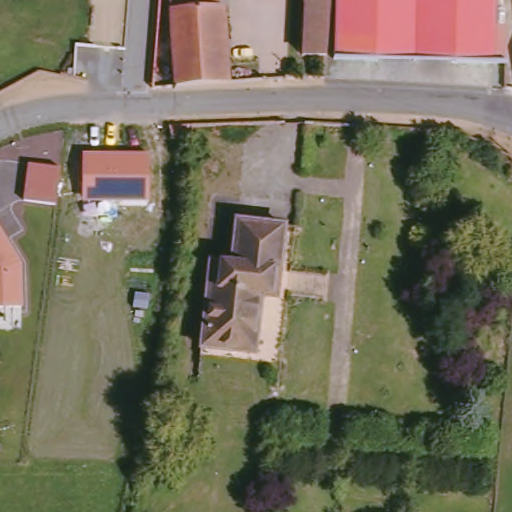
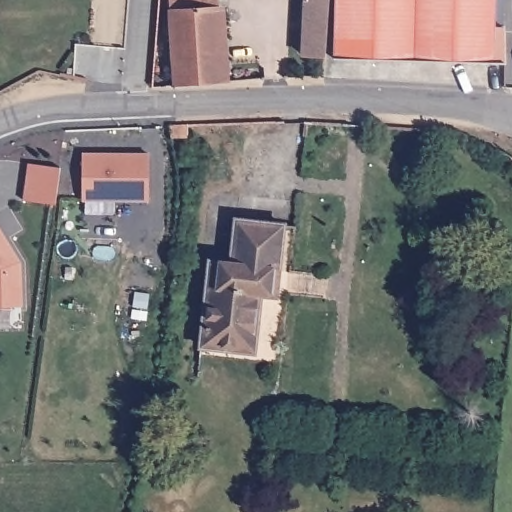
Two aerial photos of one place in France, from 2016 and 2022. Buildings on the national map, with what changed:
unchanged [(172,0),(220,0),(221,7),(173,10),(172,0)]
unchanged [(301,52),(303,0),(327,0),(323,53),(301,52)]
unchanged [(501,22),(502,59),(332,55),(333,0),(494,0),(493,22),(501,22)]
unchanged [(227,84),(177,87),(173,10),(221,7),(227,84)]
unchanged [(147,202),(82,203),(82,154),(148,154),(147,202)]
unchanged [(60,169),(55,204),(23,200),(27,165),(60,169)]
unchanged [(220,350),(197,347),(208,262),(228,265),(234,221),(281,226),(276,271),(274,295),(266,294),(256,293),(250,342),(248,354),(220,350)]
unchanged [(23,267),(24,311),(0,311),(0,229),(23,267)]

